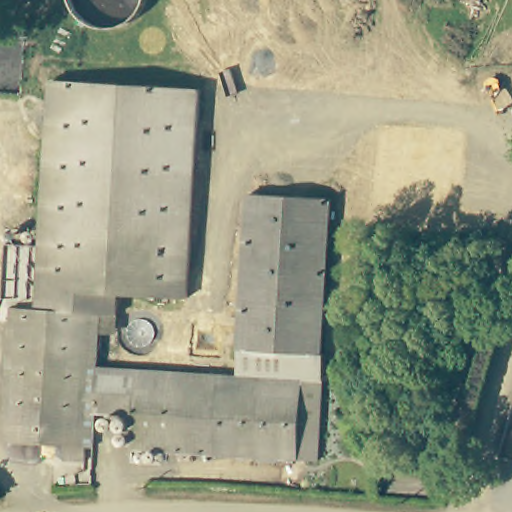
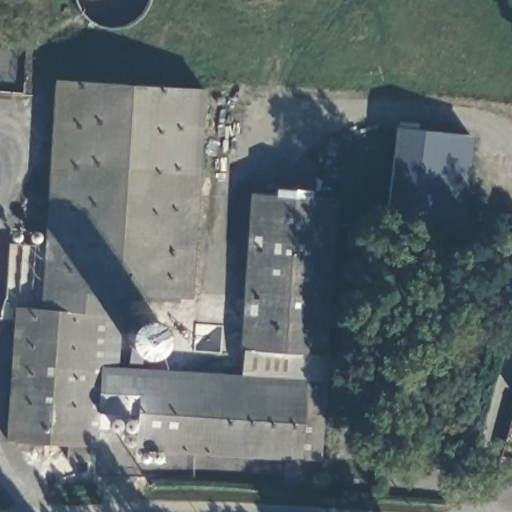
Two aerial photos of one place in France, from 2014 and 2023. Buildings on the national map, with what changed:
unchanged [(85,456),(65,454),(64,439),(4,435),(13,301),(40,301),(54,74),(201,83),(188,293),(121,288),(118,309),(102,307),(100,360),(238,369),(250,188),(332,193),(323,347),(326,347),(319,454),(298,454),(134,443),(136,409),(96,407),(88,411),(85,456)]
new [(383,219),(394,126),(468,135),(458,225),(383,219)]
new [(160,336),(158,344),(152,349),(145,352),(137,351),(136,351),(130,348),(125,343),(123,334),(124,327),(127,320),(133,317),(140,315),(145,315),(149,316),(152,317),(156,321),(159,327),(160,336)]

